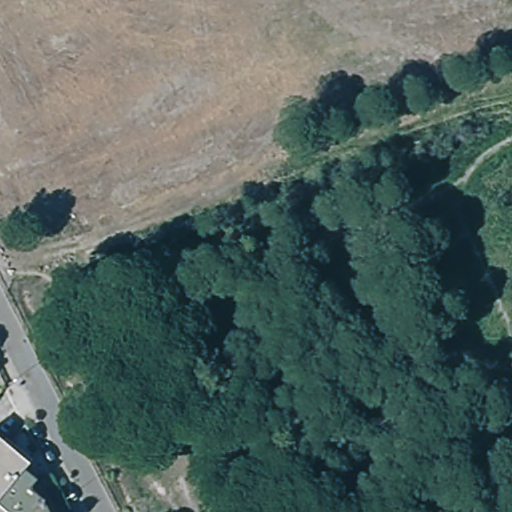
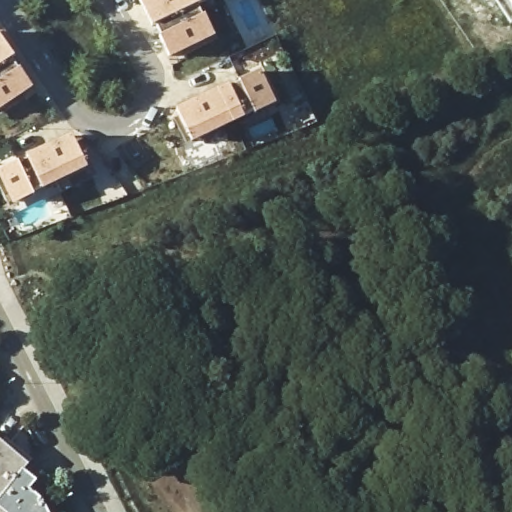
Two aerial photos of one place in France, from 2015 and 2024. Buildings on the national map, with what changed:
new [(160,37),(155,26),(151,27),(139,0),(209,0),(210,2),(201,4),(196,7),(202,17),(207,16),(217,37),(170,61),(160,37)]
new [(512,5),(509,0),(512,0),(512,5)]
new [(0,113),(0,35),(16,56),(14,57),(20,69),(34,89),(0,113)]
new [(277,105),(255,117),(252,112),(243,117),(245,121),(192,145),(175,110),(228,85),(229,87),(239,82),(261,73),(277,105)]
new [(71,135),(89,170),(43,191),(42,188),(32,192),(34,197),(12,207),(0,180),(0,171),(18,164),(27,161),(25,157),(71,135)]
unchanged [(3,444),(1,446),(27,467),(23,472),(35,483),(31,488),(40,497),(48,512),(0,512),(0,442),(3,444)]

